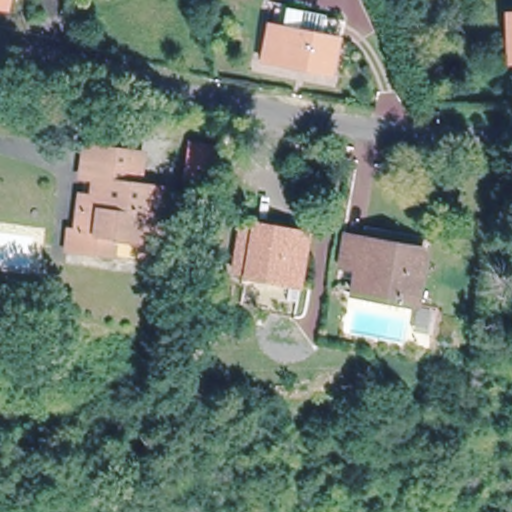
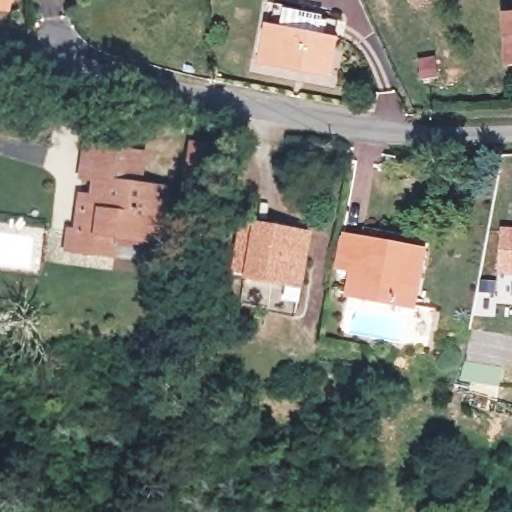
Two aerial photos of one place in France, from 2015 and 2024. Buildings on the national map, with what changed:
unchanged [(8,9),(0,8),(0,0),(10,0),(8,9)]
unchanged [(503,15),(512,14),(512,61),(505,61),(503,15)]
unchanged [(323,80),(254,66),(262,30),(284,35),(287,21),(333,31),(323,80)]
unchanged [(68,230),(73,230),(76,194),(94,195),(95,177),(80,176),(82,144),(124,148),(144,149),(141,182),(165,184),(160,239),(115,235),(113,252),(87,250),(67,248),(68,230)]
unchanged [(311,231),(301,282),(251,272),(251,269),(239,266),(241,251),(247,223),(259,225),(260,222),(311,231)]
new [(512,274),(497,273),(501,224),(512,224),(512,274)]
unchanged [(427,250),(417,307),(349,295),(354,270),(340,268),(346,236),(427,250)]
unchanged [(270,309),(271,305),(244,300),(249,276),(303,286),(298,314),(270,309)]

